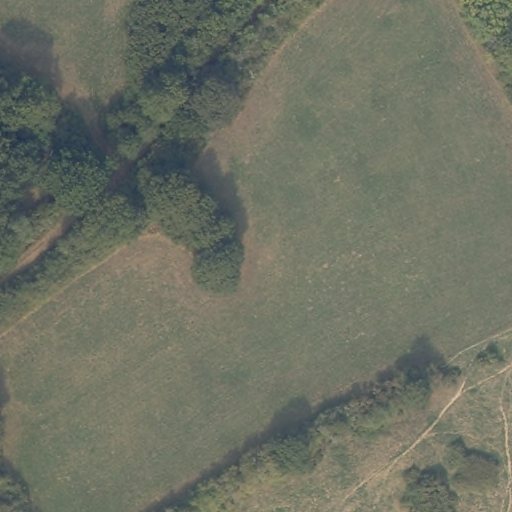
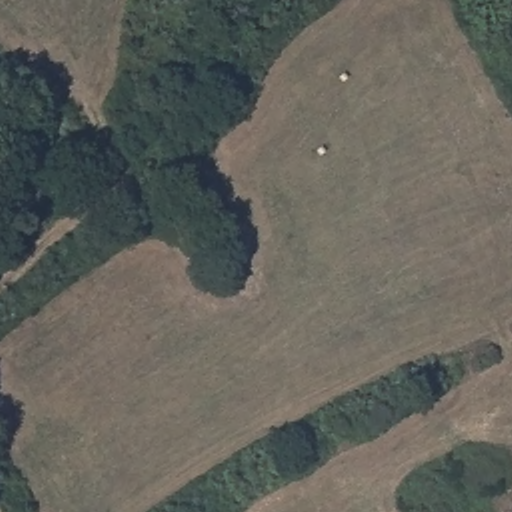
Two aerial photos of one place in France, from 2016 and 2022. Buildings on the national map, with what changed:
unchanged [(63,147),(57,159),(39,153),(42,139),(63,147)]

